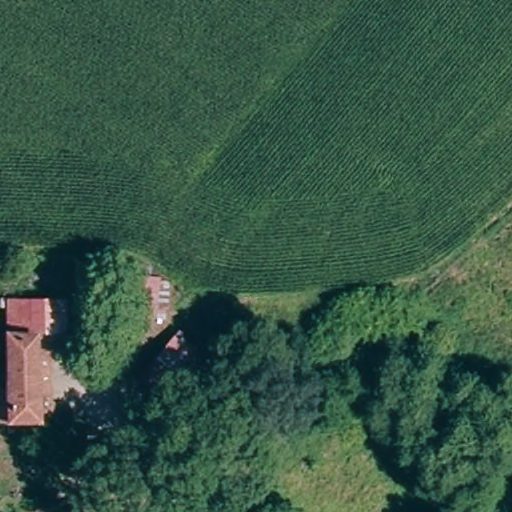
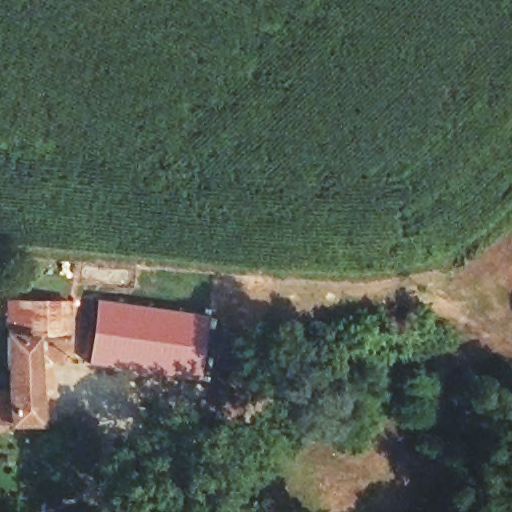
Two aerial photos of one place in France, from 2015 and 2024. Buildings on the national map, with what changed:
demolished [(163,277),(162,306),(161,320),(144,320),(118,319),(121,273),(163,277)]
unchanged [(70,298),(71,334),(40,335),(44,422),(0,417),(0,387),(3,387),(7,300),(70,298)]
new [(205,314),(197,377),(89,362),(97,299),(205,314)]
demolished [(228,367),(190,420),(140,381),(180,329),(228,367)]

